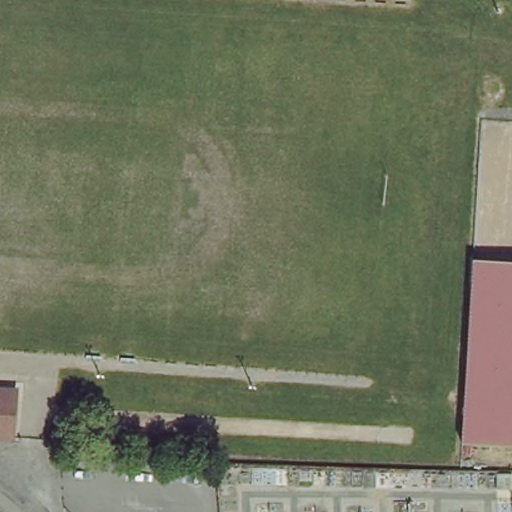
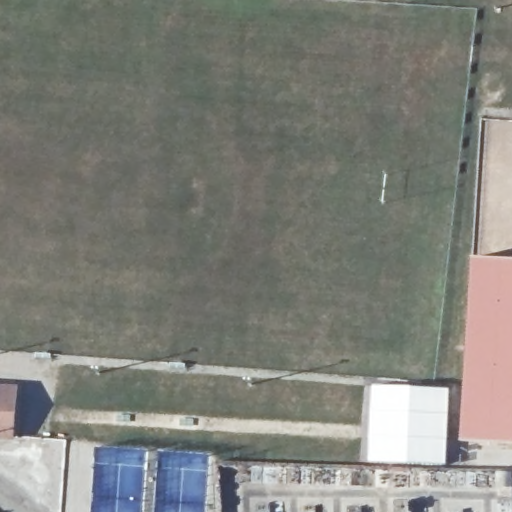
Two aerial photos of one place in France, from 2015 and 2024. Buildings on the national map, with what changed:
unchanged [(467,440),(476,255),(512,257),(512,442),(467,440)]
unchanged [(24,409),(0,408),(0,388),(25,390),(24,409)]
new [(448,398),(446,469),(364,468),(370,393),(448,398)]
unchanged [(23,438),(0,440),(0,408),(24,409),(23,438)]

